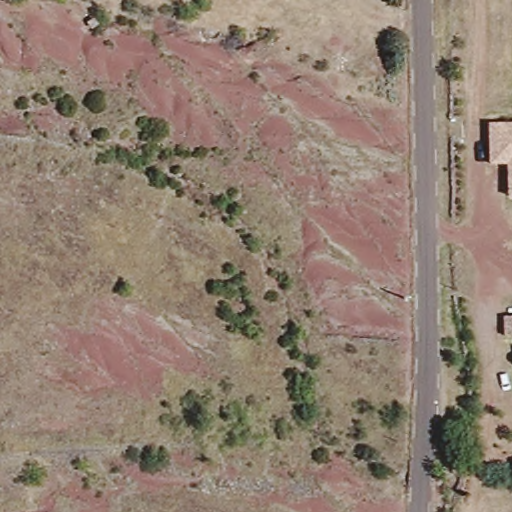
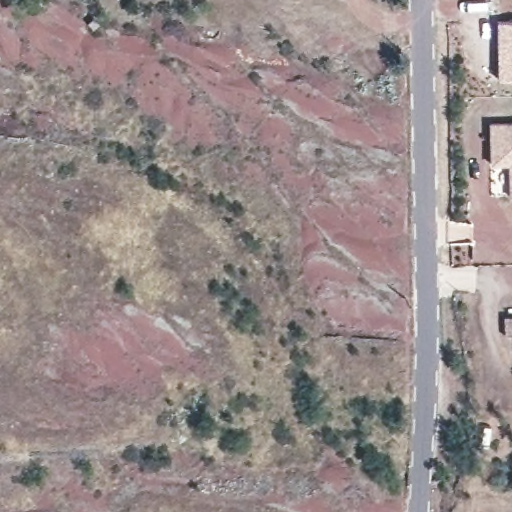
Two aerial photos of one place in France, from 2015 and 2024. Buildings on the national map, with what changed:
new [(495,77),(495,19),(512,19),(512,77),(495,77)]
unchanged [(505,167),(490,167),(488,125),(512,123),(512,198),(506,198),(505,167)]
unchanged [(502,313),(512,313),(512,332),(502,332),(502,313)]

